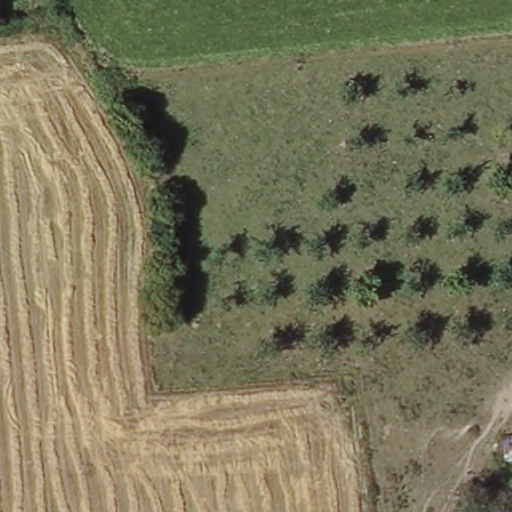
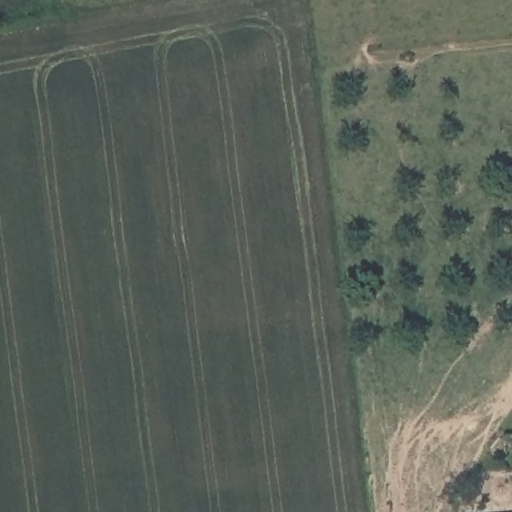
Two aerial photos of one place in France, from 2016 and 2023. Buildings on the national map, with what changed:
unchanged [(512,436),(512,461),(508,436),(512,436)]

